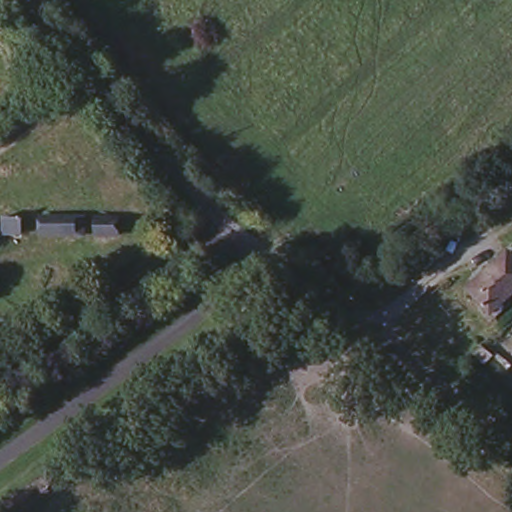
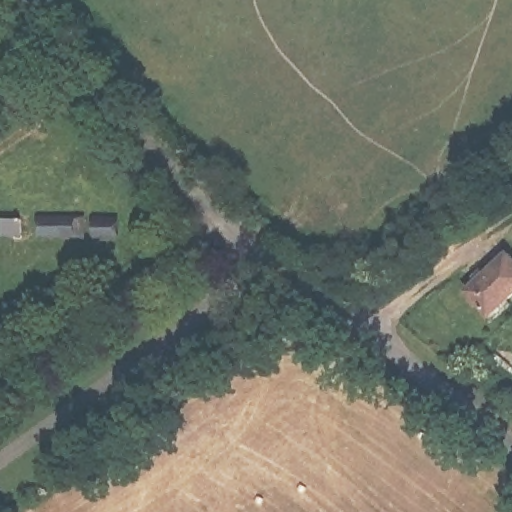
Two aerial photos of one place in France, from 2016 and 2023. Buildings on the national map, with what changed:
unchanged [(6,212),(23,214),(24,231),(5,227),(6,212)]
unchanged [(47,214),(74,218),(73,234),(48,232),(47,214)]
unchanged [(104,221),(118,222),(117,237),(105,236),(104,221)]
unchanged [(460,296),(506,258),(512,266),(512,302),(482,326),(460,296)]
unchanged [(485,363),(495,373),(486,381),(474,372),(485,363)]

